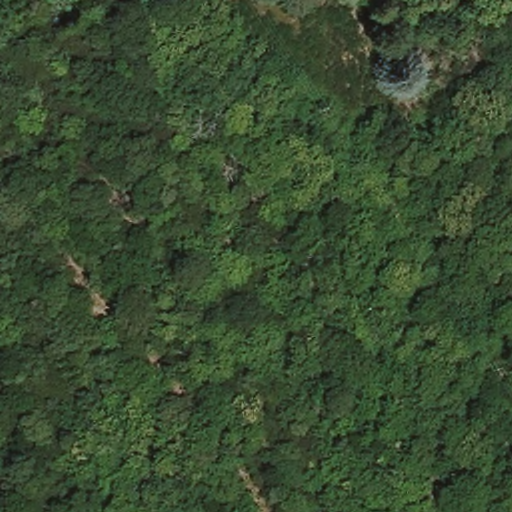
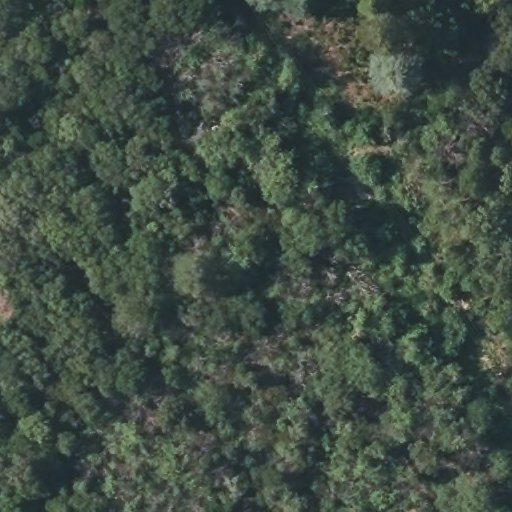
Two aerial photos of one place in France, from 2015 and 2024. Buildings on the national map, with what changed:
unchanged [(280,78),(273,92),(260,86),(266,72),(280,78)]

